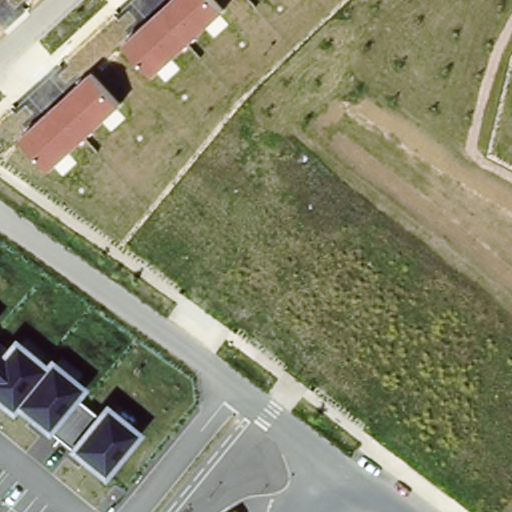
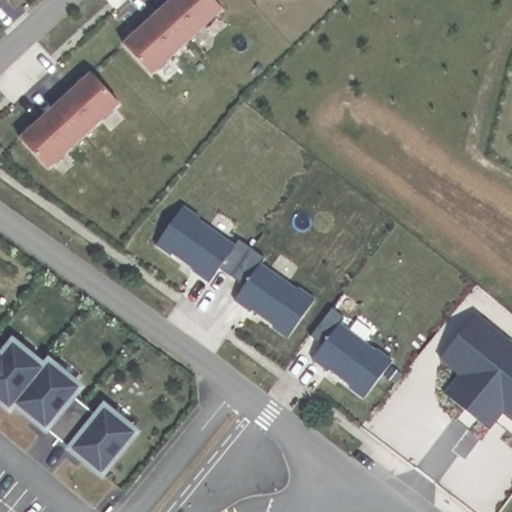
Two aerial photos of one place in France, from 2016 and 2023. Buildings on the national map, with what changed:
unchanged [(123,44),(171,0),(212,0),(222,12),(152,75),(123,44)]
unchanged [(21,137),(91,74),(118,105),(49,169),(21,137)]
new [(185,207),(201,217),(198,221),(236,246),(239,241),(265,259),(261,265),(297,289),(300,287),(316,300),(288,338),(272,327),(274,325),(254,310),(251,312),(234,301),(246,286),(220,267),(210,282),(192,271),(195,268),(172,252),(171,256),(156,246),(185,207)]
new [(332,310),(344,319),(340,325),(376,350),(378,348),(393,361),(364,398),(349,387),(351,385),(330,369),(328,371),(312,360),(324,345),(312,336),(332,310)]
new [(459,374),(439,358),(475,313),(512,344),(512,418),(504,411),(489,430),(477,421),(463,408),(443,392),(459,374)]
unchanged [(3,352),(13,337),(45,365),(48,362),(80,387),(72,397),(94,414),(100,404),(140,433),(104,479),(66,450),(46,435),(50,432),(44,429),(16,408),(10,415),(0,407),(0,349),(3,352)]

